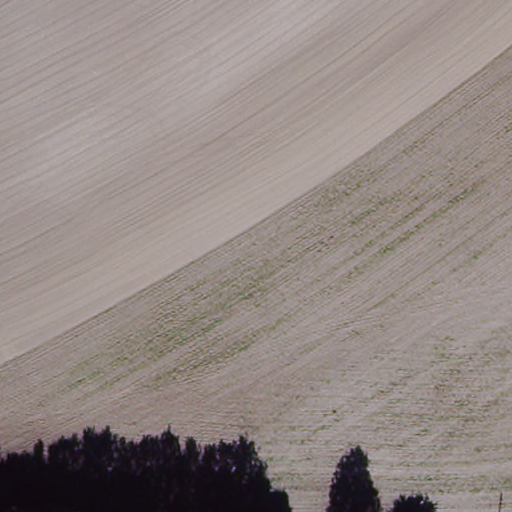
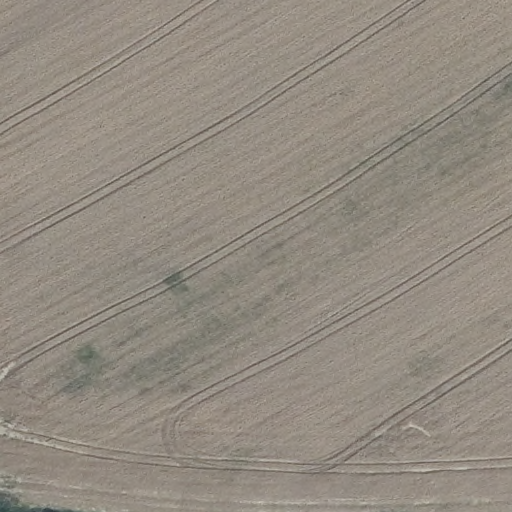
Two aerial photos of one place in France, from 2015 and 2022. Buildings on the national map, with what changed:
[]

